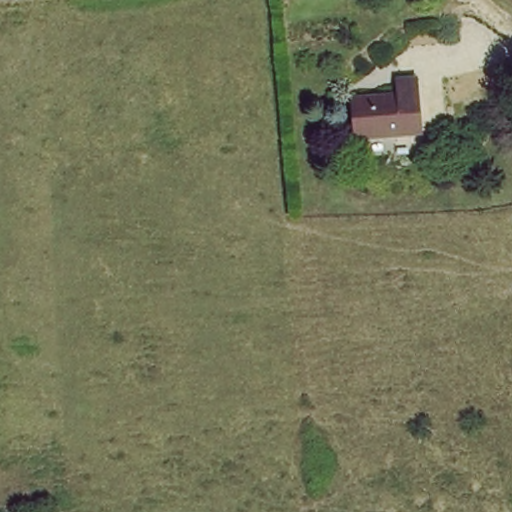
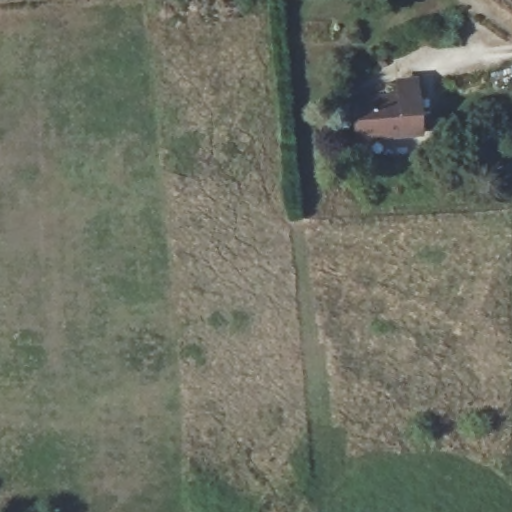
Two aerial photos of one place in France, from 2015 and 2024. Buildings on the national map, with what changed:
unchanged [(398,98),(396,82),(414,79),(421,137),(355,142),(350,102),(398,98)]

